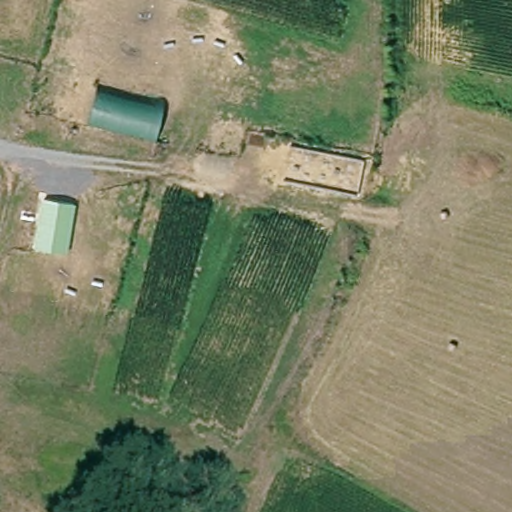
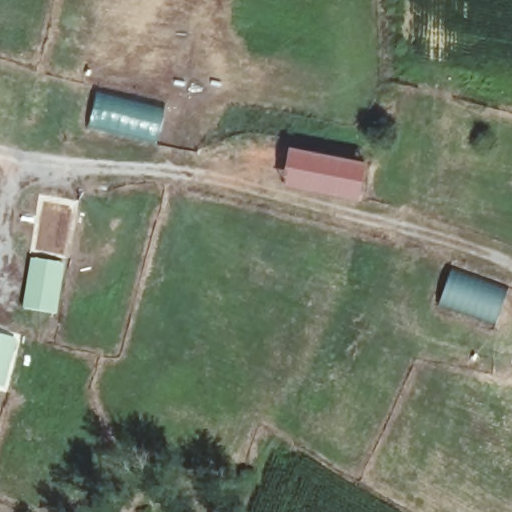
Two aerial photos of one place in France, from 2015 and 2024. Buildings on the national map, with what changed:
unchanged [(157,144),(90,133),(96,95),(163,106),(157,144)]
new [(365,161),(357,198),(281,183),(289,146),(365,161)]
new [(35,251),(44,202),(76,206),(69,253),(35,251)]
new [(25,312),(34,263),(66,267),(58,314),(25,312)]
new [(508,291),(495,325),(439,305),(452,270),(508,291)]
new [(0,386),(0,333),(16,337),(5,388),(0,386)]

